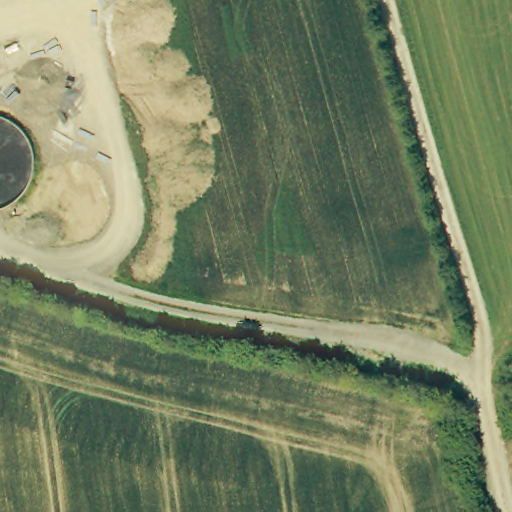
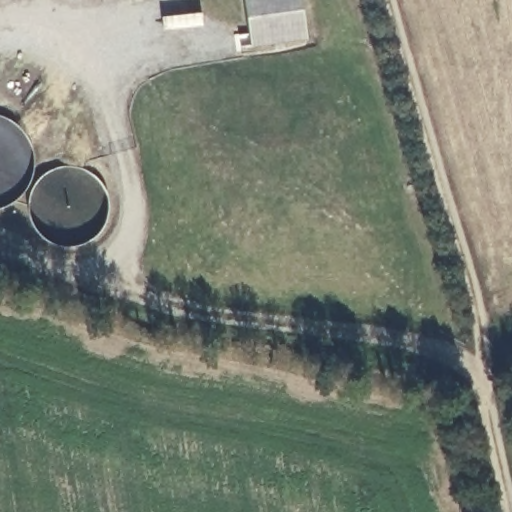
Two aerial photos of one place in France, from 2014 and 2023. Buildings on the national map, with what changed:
new [(305,39),(250,47),(243,0),(299,0),(305,39)]

